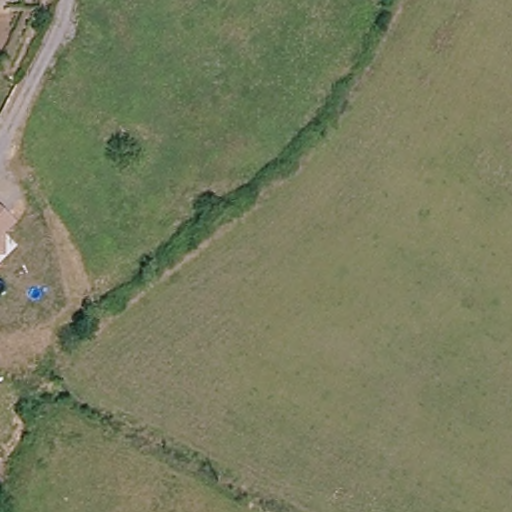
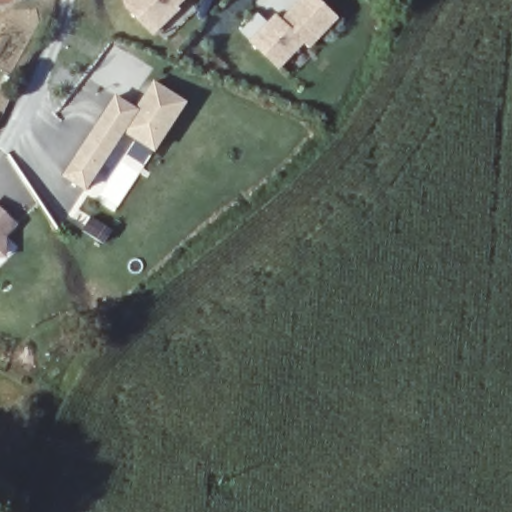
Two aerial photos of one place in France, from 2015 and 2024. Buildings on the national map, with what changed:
unchanged [(15,1),(0,4),(0,0),(14,0),(15,1)]
new [(177,8),(180,11),(153,37),(126,7),(123,0),(185,0),(177,8)]
new [(338,19),(310,49),(304,45),(279,71),(249,43),(275,14),(281,20),(300,0),(319,0),(338,19)]
new [(116,99),(136,112),(154,85),(186,104),(155,154),(124,134),(87,193),(65,180),(116,99)]
new [(7,238),(7,258),(0,258),(0,207),(19,226),(7,238)]

